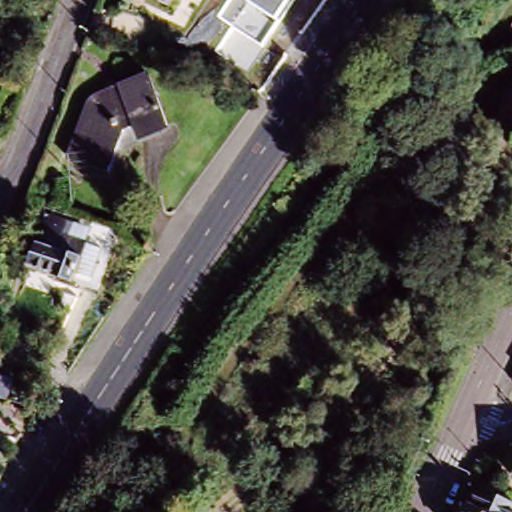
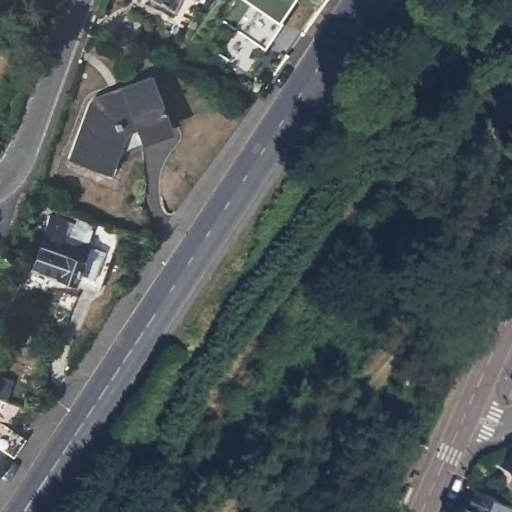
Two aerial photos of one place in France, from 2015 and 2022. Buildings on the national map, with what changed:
unchanged [(146,0),(177,0),(170,13),(146,0)]
unchanged [(263,47),(219,19),(232,0),(296,0),(263,47)]
unchanged [(170,129),(142,140),(137,129),(127,131),(110,174),(67,159),(84,115),(87,109),(89,105),(92,103),(95,101),(100,99),(103,99),(106,100),(109,101),(110,102),(125,97),(122,91),(150,80),(170,129)]
unchanged [(43,279),(45,274),(25,267),(32,245),(35,246),(41,228),(79,242),(85,225),(110,234),(90,290),(67,282),(65,287),(43,279)]
unchanged [(70,297),(65,311),(51,306),(57,292),(70,297)]
unchanged [(0,424),(2,421),(21,433),(15,443),(0,433),(0,424)]
unchanged [(512,511),(512,512),(472,512),(479,496),(512,511)]

